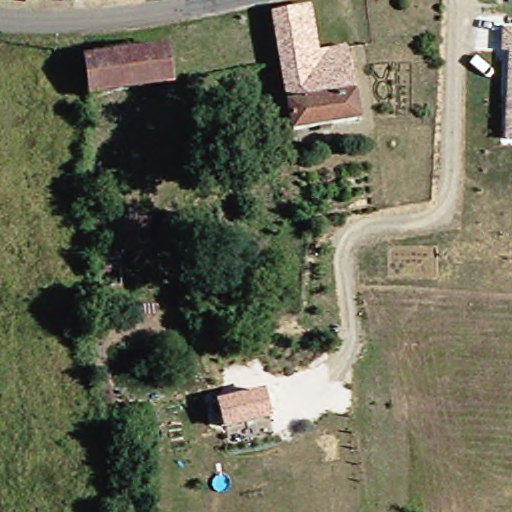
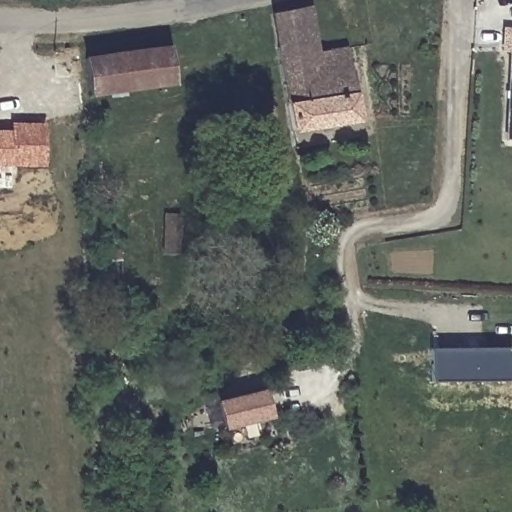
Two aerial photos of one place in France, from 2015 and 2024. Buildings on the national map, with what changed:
unchanged [(310,53),(302,55),(299,42),(273,47),(266,14),(302,7),(310,53)]
unchanged [(508,61),(509,39),(512,39),(512,61),(508,61)]
unchanged [(340,47),(354,120),(288,132),(272,48),(273,47),(299,42),(302,55),(310,53),(340,47)]
unchanged [(166,84),(84,95),(79,60),(161,48),(166,84)]
unchanged [(249,112),(235,111),(236,76),(250,76),(249,112)]
new [(9,122),(44,122),(44,167),(0,166),(0,130),(8,130),(9,122)]
unchanged [(177,253),(164,253),(164,215),(178,215),(177,253)]
unchanged [(120,288),(99,289),(99,252),(120,252),(120,288)]
new [(512,346),(512,380),(432,379),(431,346),(512,346)]
unchanged [(264,391),(270,417),(225,427),(219,402),(264,391)]

